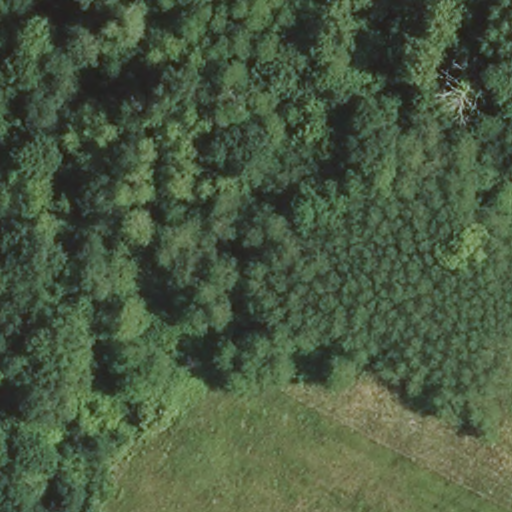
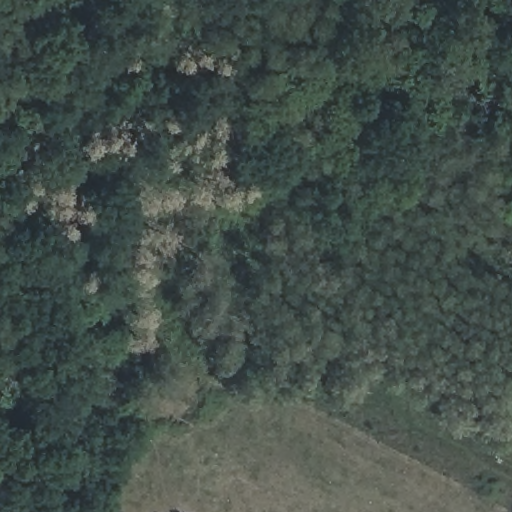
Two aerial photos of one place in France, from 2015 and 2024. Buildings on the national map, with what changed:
unchanged [(135,386),(167,333),(195,351),(159,400),(135,386)]

